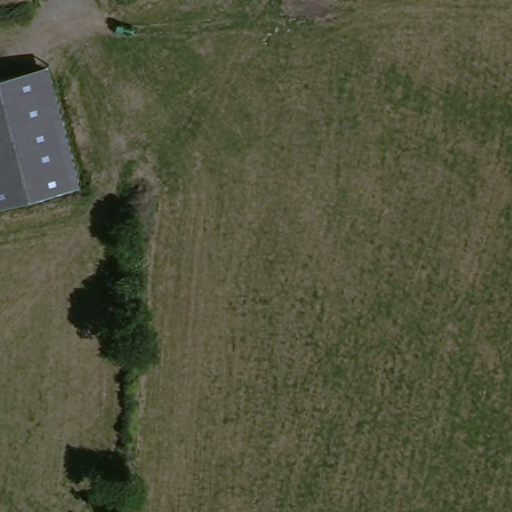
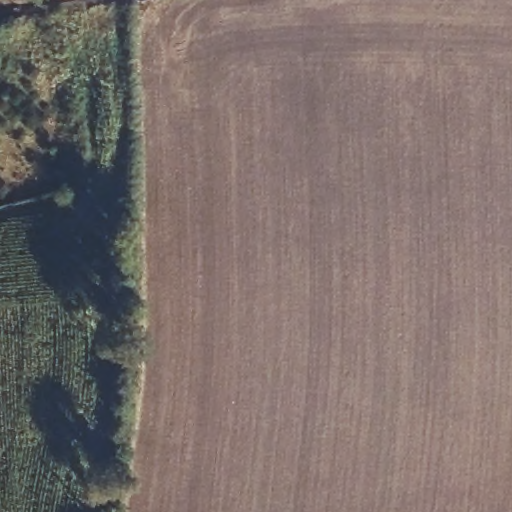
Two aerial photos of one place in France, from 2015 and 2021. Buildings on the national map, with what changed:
demolished [(42,61),(76,184),(0,206),(0,74),(42,61)]

